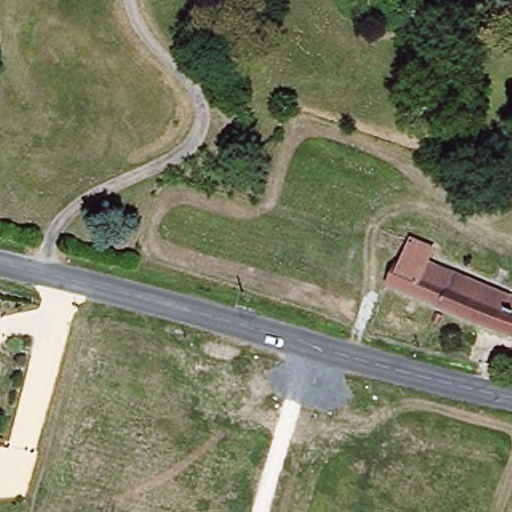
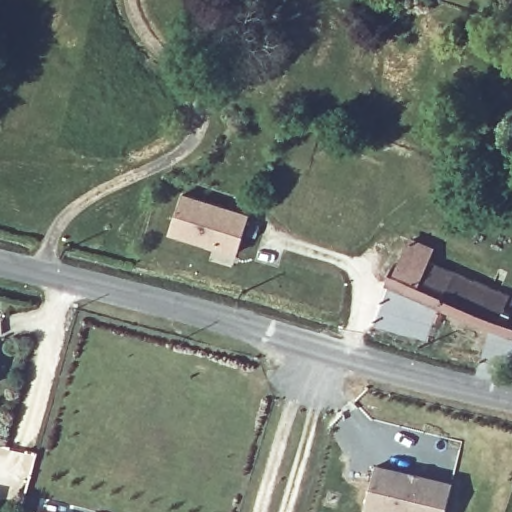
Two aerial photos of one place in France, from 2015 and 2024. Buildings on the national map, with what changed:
new [(182,194),(249,216),(236,252),(170,230),(182,194)]
unchanged [(383,282),(395,258),(407,235),(432,245),(429,252),(455,264),(435,305),(383,282)]
unchanged [(466,269),(510,288),(508,294),(512,295),(512,339),(435,305),(455,264),(466,269)]
new [(452,481),(445,512),(384,512),(363,507),(374,461),(452,481)]
new [(36,511),(39,512),(36,512),(36,511)]

